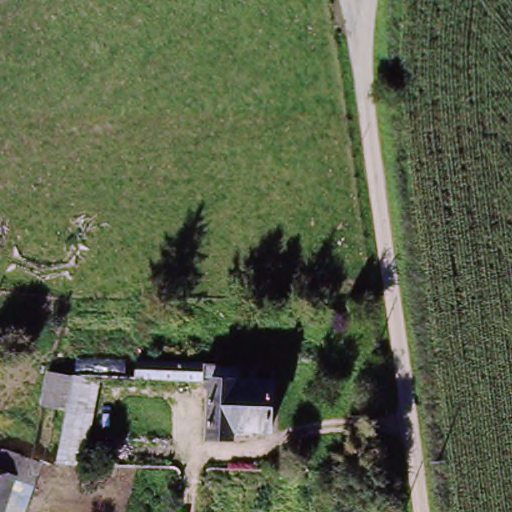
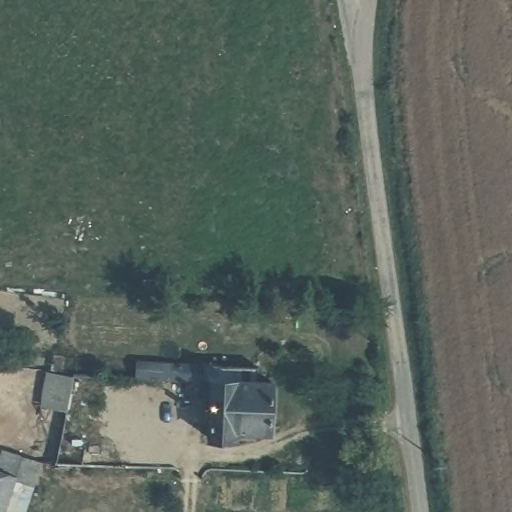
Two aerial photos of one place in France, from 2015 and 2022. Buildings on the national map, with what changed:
unchanged [(202,374),(140,377),(140,355),(207,355),(207,375),(202,374)]
unchanged [(252,355),(252,373),(272,372),(275,422),(235,424),(235,437),(205,439),(202,374),(207,375),(207,355),(252,355)]
unchanged [(40,404),(45,372),(70,376),(63,411),(40,404)]
unchanged [(24,512),(0,512),(0,480),(32,488),(24,512)]

